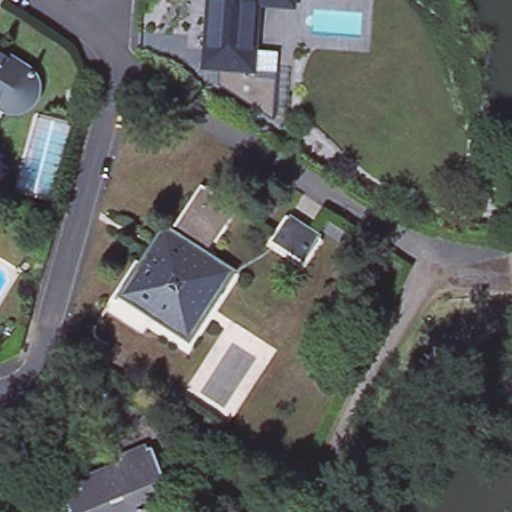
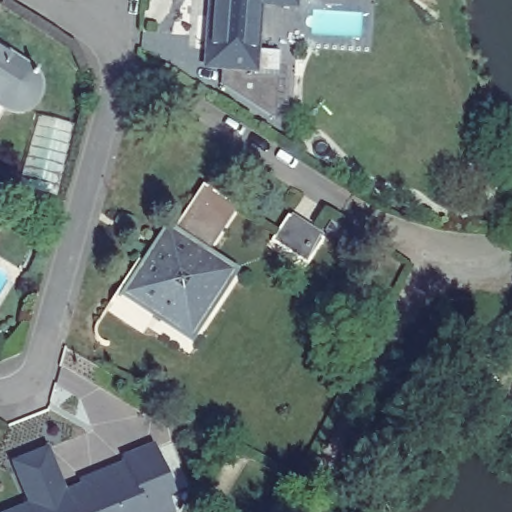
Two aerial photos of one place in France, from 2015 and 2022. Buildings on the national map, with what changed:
unchanged [(208,0),(259,0),(252,66),(217,63),(202,61),(208,0)]
unchanged [(285,0),(290,0),(290,1),(285,0)]
unchanged [(44,76),(47,85),(47,95),(35,110),(20,111),(0,99),(0,46),(37,69),(44,76)]
unchanged [(252,66),(251,71),(275,74),(272,116),(215,79),(217,63),(252,66)]
unchanged [(204,259),(224,271),(218,280),(220,293),(205,314),(194,307),(180,315),(169,308),(165,316),(122,285),(138,264),(147,270),(204,183),(239,206),(204,259)]
unchanged [(290,214),(327,238),(312,261),(275,237),(290,214)]
new [(28,507),(10,463),(50,449),(67,502),(72,512),(13,512),(28,507)]
unchanged [(127,462),(156,450),(175,499),(149,510),(150,512),(72,512),(67,502),(87,494),(85,488),(130,471),(127,462)]

